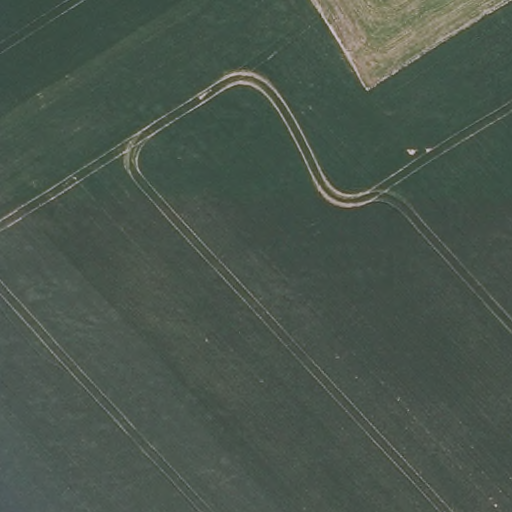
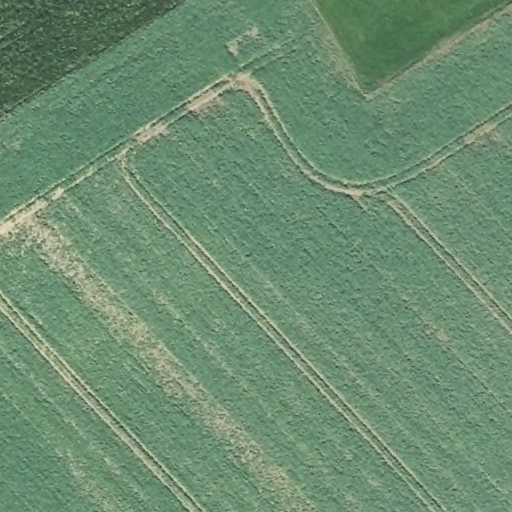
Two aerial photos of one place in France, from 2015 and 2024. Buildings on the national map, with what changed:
[]

